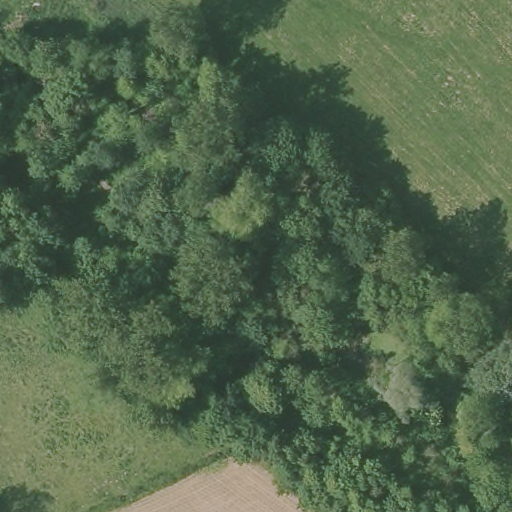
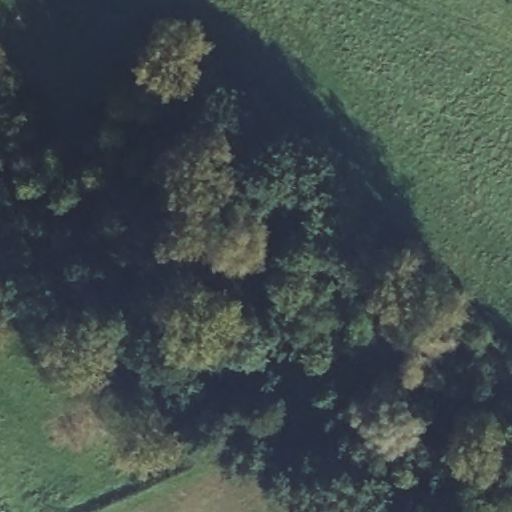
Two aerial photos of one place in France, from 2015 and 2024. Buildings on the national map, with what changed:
[]

